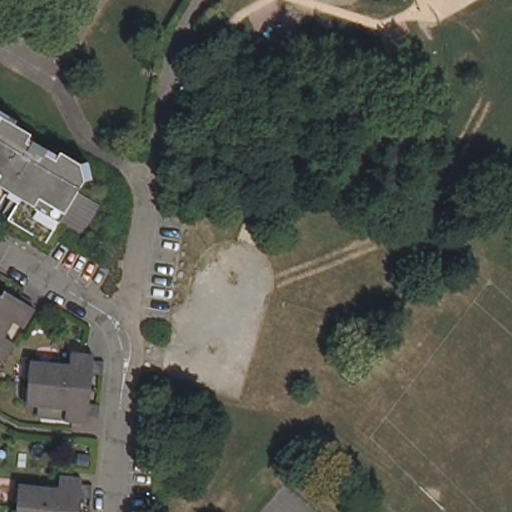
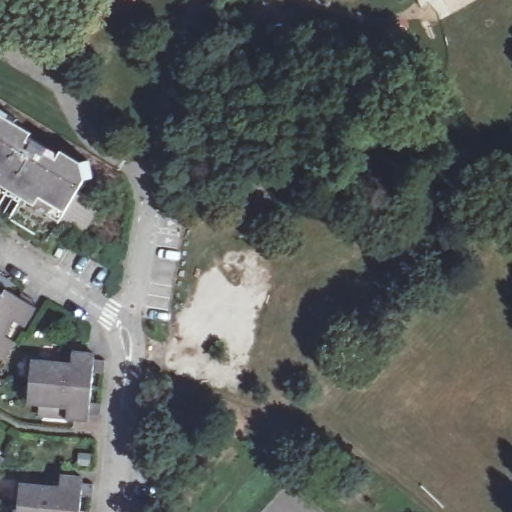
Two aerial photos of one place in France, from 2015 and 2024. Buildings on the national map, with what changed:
unchanged [(23,113),(40,124),(37,127),(67,145),(70,141),(89,154),(96,152),(100,169),(92,170),(86,182),(107,196),(89,225),(66,211),(52,233),(14,210),(15,207),(10,204),(22,185),(14,181),(1,202),(0,201),(0,95),(25,109),(23,113)]
unchanged [(0,361),(0,299),(2,296),(5,290),(19,298),(22,295),(34,301),(31,306),(37,310),(26,327),(14,320),(10,326),(14,328),(9,336),(6,334),(4,337),(16,345),(5,363),(0,361)]
unchanged [(0,299),(0,296),(2,296),(0,299)]
unchanged [(109,362),(108,373),(97,372),(95,387),(92,386),(37,381),(32,381),(33,377),(30,376),(31,362),(60,365),(60,360),(69,361),(68,365),(76,365),(77,356),(78,350),(92,351),(99,352),(98,357),(110,359),(109,362)]
unchanged [(57,407),(56,403),(27,400),(29,386),(32,386),(32,381),(37,381),(92,386),(95,387),(94,400),(106,401),(104,417),(92,416),(92,420),(79,420),(72,418),(56,416),(57,407)]
unchanged [(0,463),(0,460),(1,461),(0,463)]
unchanged [(82,475),(82,481),(92,483),(94,483),(92,496),(80,496),(79,510),(62,510),(32,507),(16,505),(16,502),(12,501),(14,485),(43,488),(44,484),(52,485),(52,488),(59,488),(61,474),(70,474),(82,475)]
unchanged [(12,511),(15,511),(16,505),(32,507),(62,510),(79,510),(78,512),(12,512),(12,511)]

